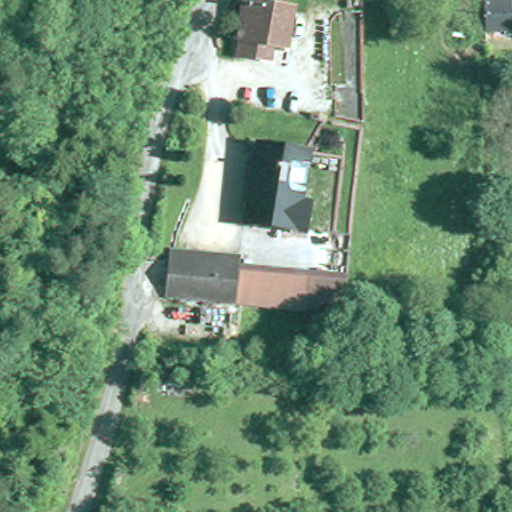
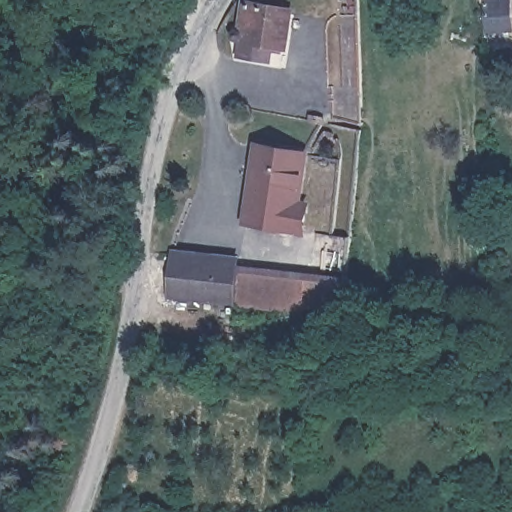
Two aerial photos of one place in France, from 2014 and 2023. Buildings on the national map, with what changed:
unchanged [(286,39),(271,36),(269,49),(237,43),(239,32),(230,30),(231,20),(240,21),(244,0),(283,0),(292,1),(286,39)]
unchanged [(485,0),(509,0),(510,28),(485,29),(485,0)]
unchanged [(295,190),(313,194),(307,220),(247,209),(261,131),(305,140),(295,190)]
unchanged [(236,249),(235,262),(233,294),(167,290),(170,245),(236,249)]
unchanged [(307,266),(305,298),(295,297),(233,294),(235,262),(307,266)]

